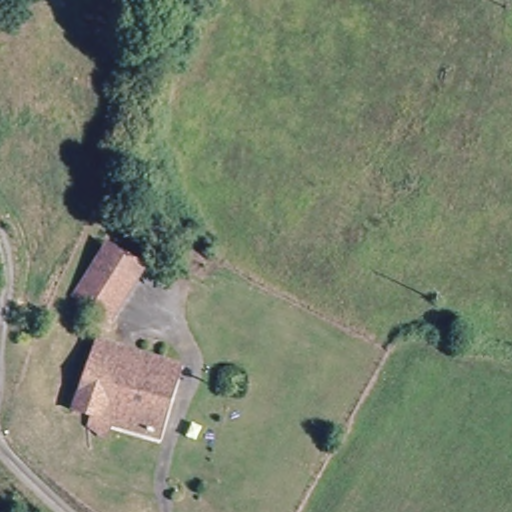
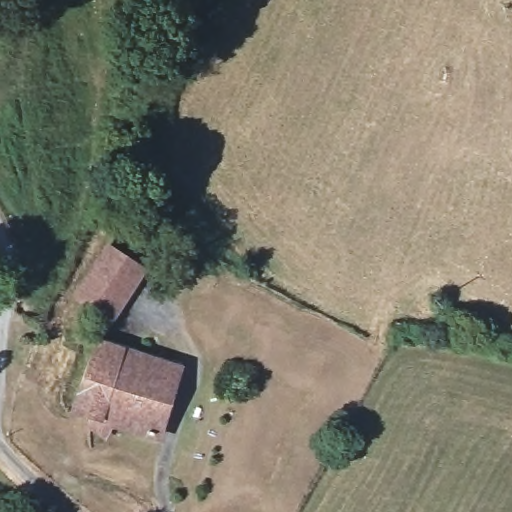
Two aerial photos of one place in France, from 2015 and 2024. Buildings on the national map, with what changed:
unchanged [(138,263),(140,275),(110,319),(77,296),(111,244),(138,263)]
unchanged [(86,424),(91,410),(77,404),(108,334),(128,344),(185,369),(157,433),(113,418),(107,433),(86,424)]

